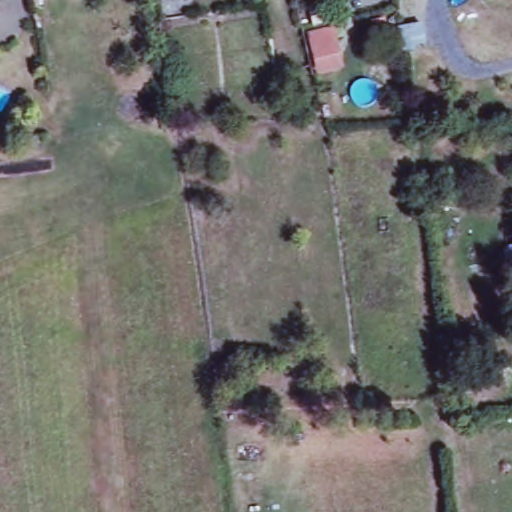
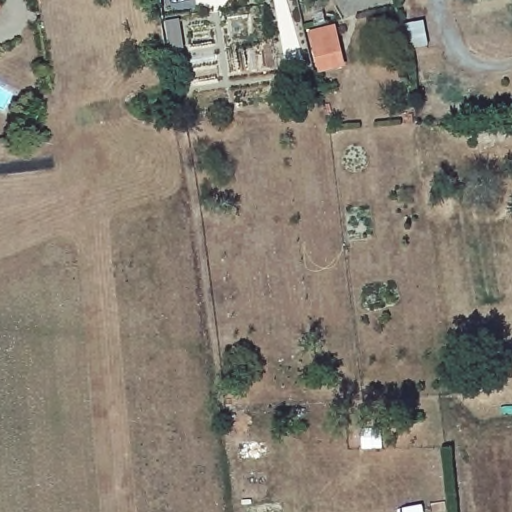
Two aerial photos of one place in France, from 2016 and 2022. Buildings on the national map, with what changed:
unchanged [(187,0),(190,15),(174,19),(171,0),(187,0)]

